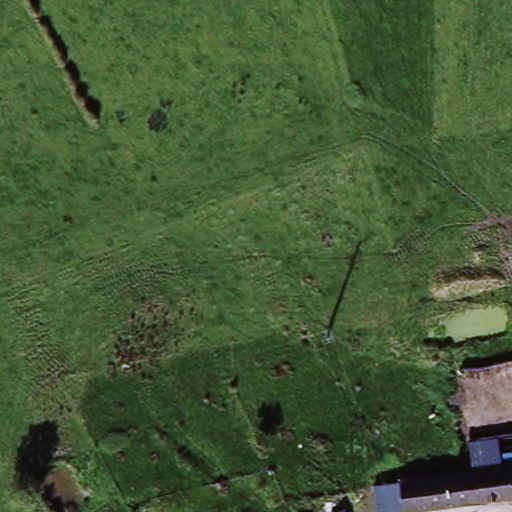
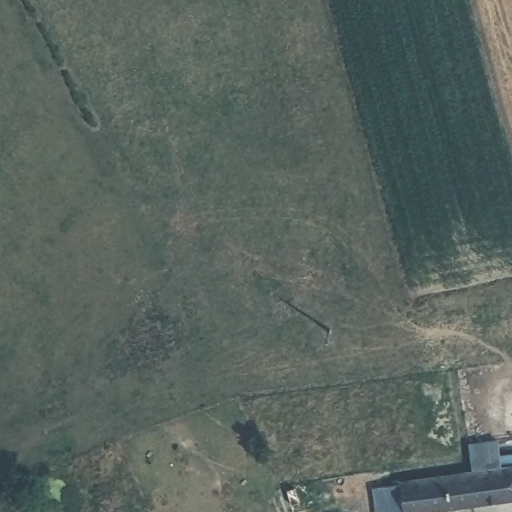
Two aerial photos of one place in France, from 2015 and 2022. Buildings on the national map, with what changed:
unchanged [(474,441),(501,439),(506,454),(494,456),(498,467),(474,469),(474,441)]
unchanged [(512,466),(512,499),(480,505),(424,512),(407,512),(399,506),(396,500),(396,491),(399,484),(512,466)]

